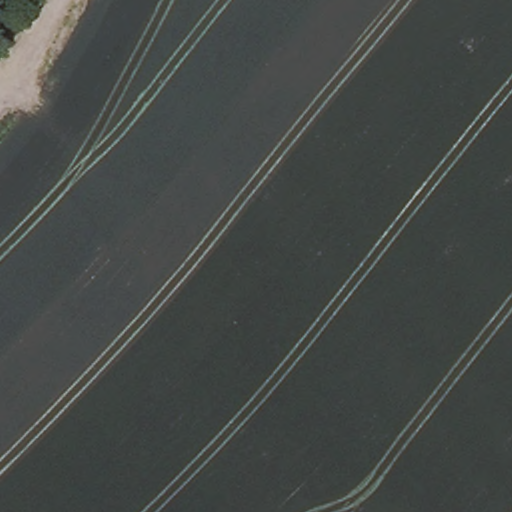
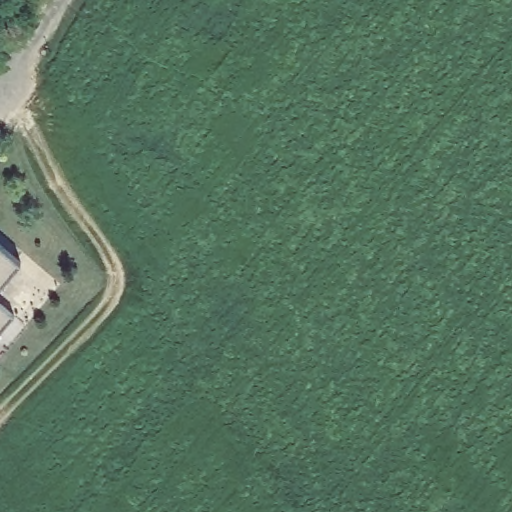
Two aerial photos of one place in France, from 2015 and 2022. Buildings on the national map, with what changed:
new [(0,283),(0,245),(18,261),(0,283)]
new [(0,331),(0,305),(13,315),(0,331)]

